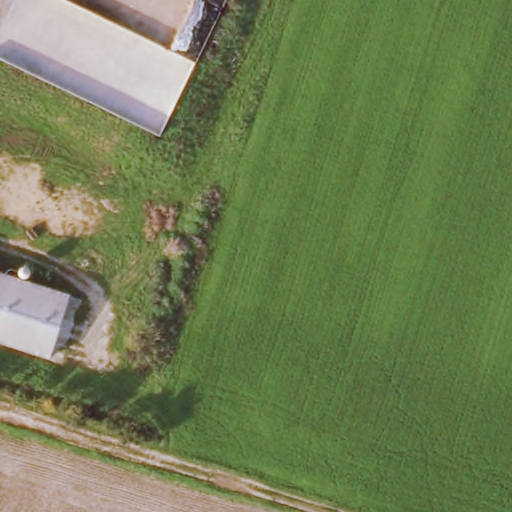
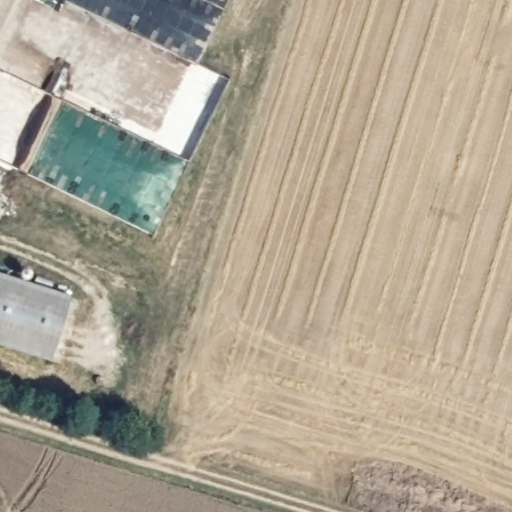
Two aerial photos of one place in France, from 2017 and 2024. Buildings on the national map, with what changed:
unchanged [(70,299),(53,359),(0,343),(0,277),(70,299)]

